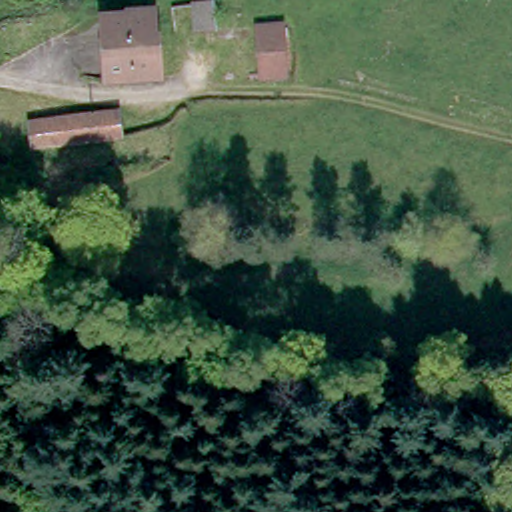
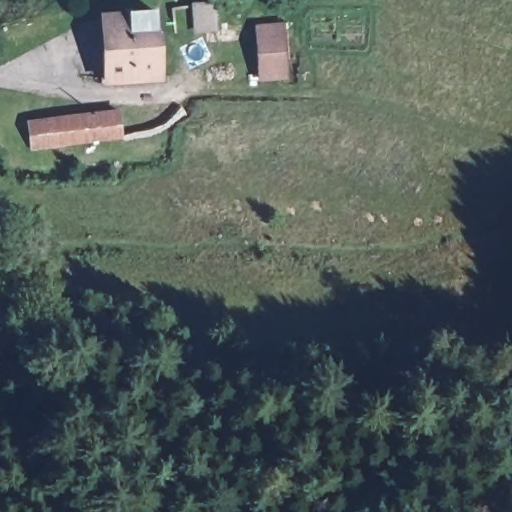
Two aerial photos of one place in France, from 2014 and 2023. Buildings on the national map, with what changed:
unchanged [(156,36),(108,42),(104,18),(104,16),(131,12),(153,9),(154,20),(156,36)]
unchanged [(282,10),(291,73),(264,77),(255,16),(282,10)]
unchanged [(203,44),(203,43),(166,47),(163,22),(213,15),(217,42),(203,44)]
unchanged [(114,78),(113,63),(108,42),(156,36),(161,71),(114,78)]
unchanged [(124,105),(129,147),(29,159),(26,114),(124,105)]

